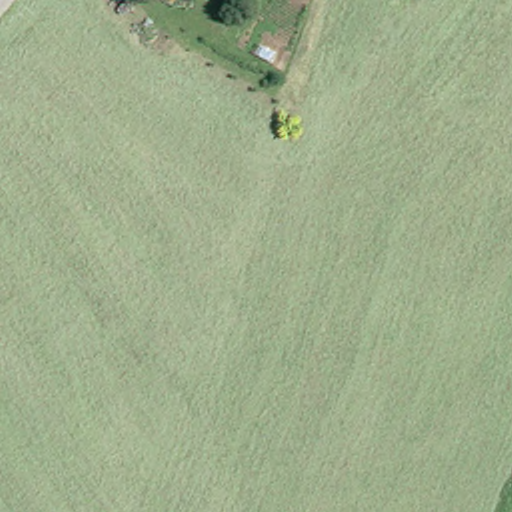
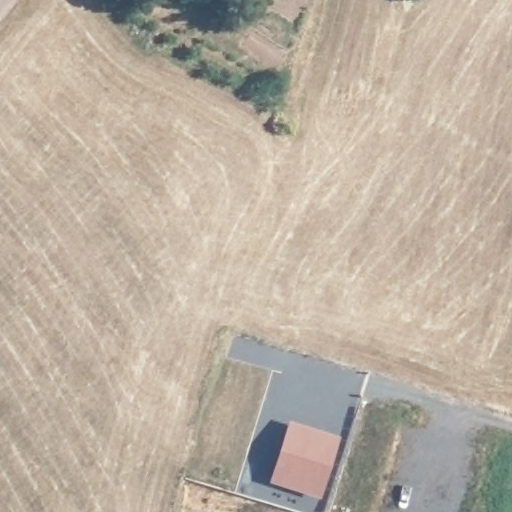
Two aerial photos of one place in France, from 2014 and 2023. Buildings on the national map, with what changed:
new [(290,422),(341,437),(321,499),(270,483),(290,422)]

